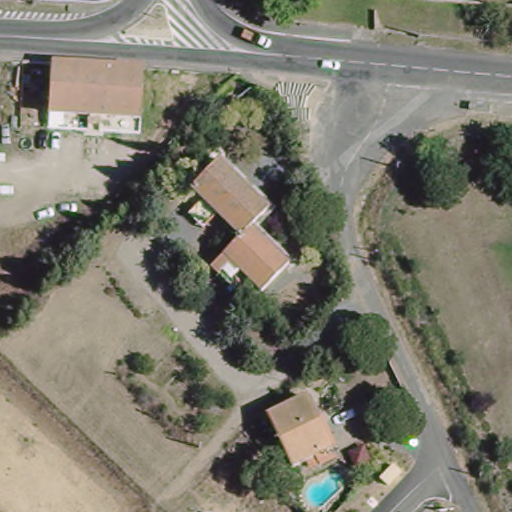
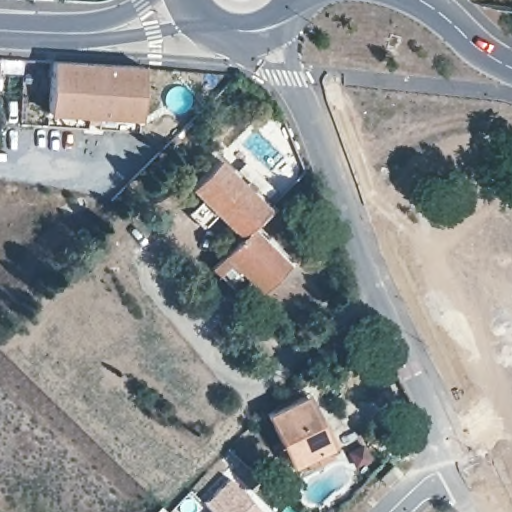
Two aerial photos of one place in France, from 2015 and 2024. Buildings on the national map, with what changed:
unchanged [(42,113),(45,63),(117,65),(137,66),(135,118),(42,113)]
unchanged [(222,156),(270,204),(254,221),(242,233),(193,186),(222,156)]
unchanged [(212,267),(225,251),(242,233),(254,221),(292,260),(263,288),(245,270),(232,284),(212,267)]
unchanged [(265,414),(302,397),(327,452),(302,464),(290,469),(277,440),(265,414)]
new [(204,503),(228,479),(262,512),(213,512),(204,503)]

